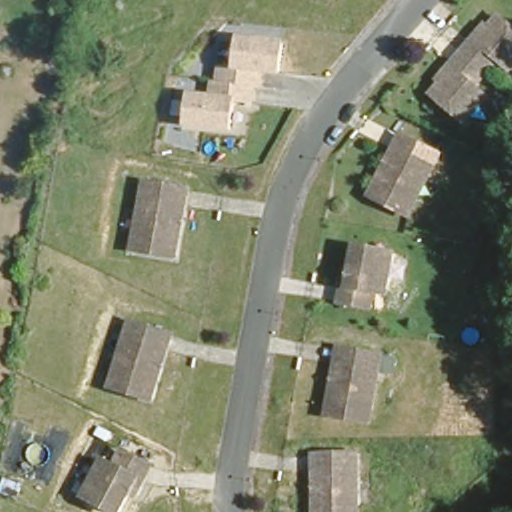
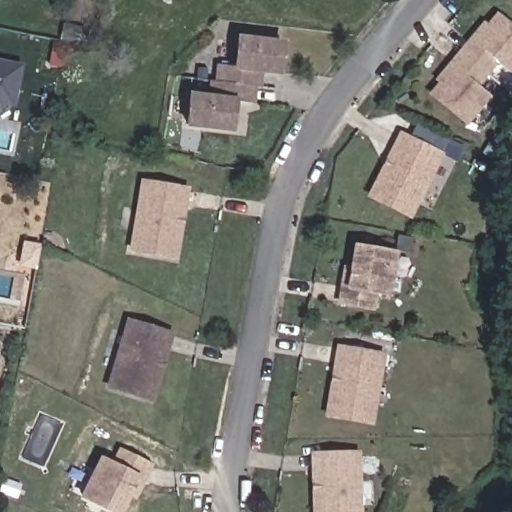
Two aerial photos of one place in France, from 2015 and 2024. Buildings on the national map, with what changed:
unchanged [(473,34),(478,37),(494,18),(512,32),(512,65),(505,72),(493,62),(483,75),(457,55),(473,34)]
unchanged [(285,46),(282,75),(264,73),(262,90),(257,89),(255,106),(237,104),(234,132),(191,127),(194,99),(214,101),(216,84),(221,84),(222,68),(239,69),(242,42),(285,46)]
unchanged [(473,87),(486,98),(464,125),(429,98),(445,78),(441,75),(457,55),(483,75),(473,87)]
new [(13,108),(0,105),(0,60),(22,64),(13,108)]
unchanged [(432,170),(434,171),(411,218),(371,199),(386,170),(401,138),(409,141),(439,155),(432,170)]
unchanged [(131,253),(141,201),(143,201),(146,186),(178,191),(187,193),(181,228),(175,261),(131,253)]
unchanged [(350,273),(354,249),(393,256),(387,297),(374,296),(371,310),(339,305),(341,289),(344,273),(350,273)]
unchanged [(112,391),(127,340),(131,341),(135,326),(166,335),(174,337),(164,373),(155,404),(112,391)]
unchanged [(375,373),(377,373),(369,425),(325,418),(330,386),(336,350),(344,351),(377,357),(375,373)]
unchanged [(128,496),(120,512),(107,512),(82,499),(101,461),(113,468),(120,454),(149,469),(141,484),(133,499),(128,496)]
unchanged [(352,473),(356,473),(356,512),(312,512),(311,493),(310,457),(320,457),(351,458),(352,473)]

